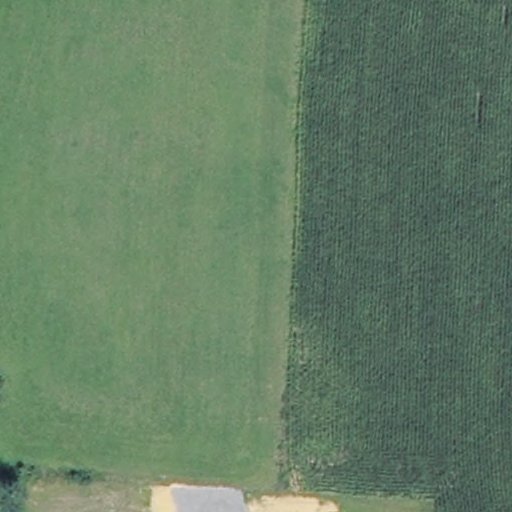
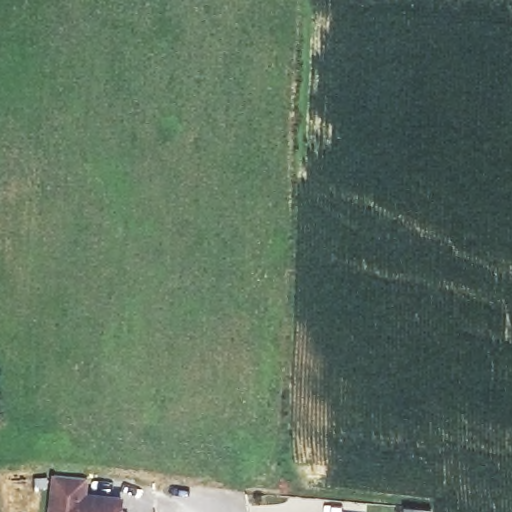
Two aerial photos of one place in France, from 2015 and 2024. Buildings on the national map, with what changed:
new [(51,473),(82,476),(80,493),(116,496),(114,512),(47,512),(51,473)]

